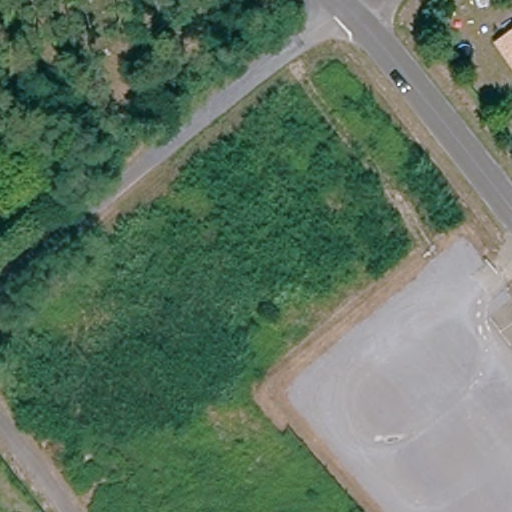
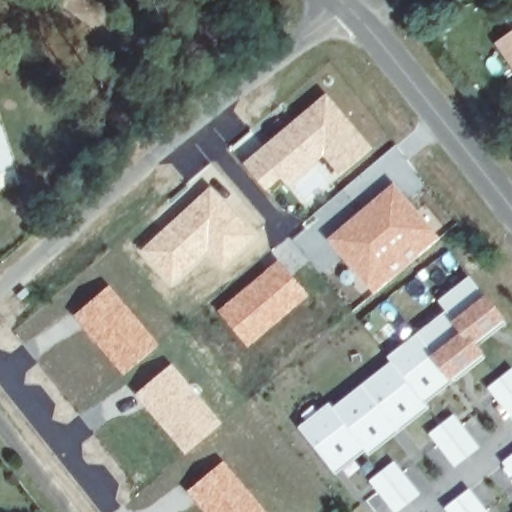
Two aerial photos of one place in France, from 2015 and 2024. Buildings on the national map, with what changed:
unchanged [(498,42),(512,33),(512,72),(496,48),(498,42)]
new [(326,92),(373,147),(337,176),(322,159),(289,189),(281,180),(266,192),(241,164),(326,92)]
new [(376,161),(387,174),(330,221),(327,219),(325,221),(317,212),(376,161)]
new [(391,180),(440,237),(403,269),(371,295),(323,240),(391,180)]
new [(211,184),(258,234),(220,269),(207,256),(171,288),(137,251),(211,184)]
new [(271,250),(289,236),(310,260),(293,273),(310,295),(247,347),(217,310),(278,258),(271,250)]
new [(365,449),(335,472),(299,426),(329,402),(332,407),(392,358),(388,355),(445,308),(438,300),(468,275),(485,293),(503,317),(475,342),(482,351),(425,402),(428,406),(370,455),(365,449)]
new [(110,283),(160,344),(122,375),(72,314),(110,283)]
new [(171,362),(222,422),(185,453),(134,393),(171,362)]
new [(512,367),(512,417),(488,387),(512,367)]
new [(428,432),(453,413),(478,446),(453,465),(428,432)]
new [(512,452),(512,474),(502,460),(512,452)]
new [(224,460),(268,512),(204,512),(185,490),(224,460)]
new [(370,480),(394,460),(420,492),(395,511),(370,480)]
new [(443,506),(469,487),(488,512),(449,512),(443,506)]

